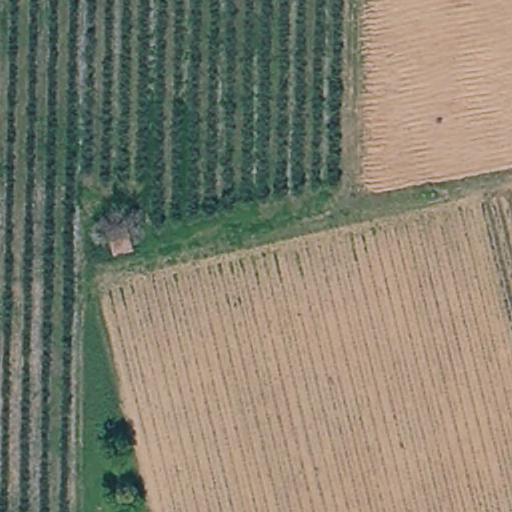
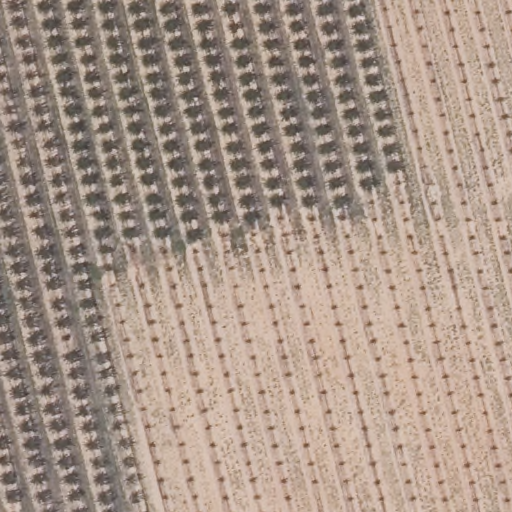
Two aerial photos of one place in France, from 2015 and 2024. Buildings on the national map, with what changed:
unchanged [(114,257),(108,232),(128,227),(133,252),(114,257)]

